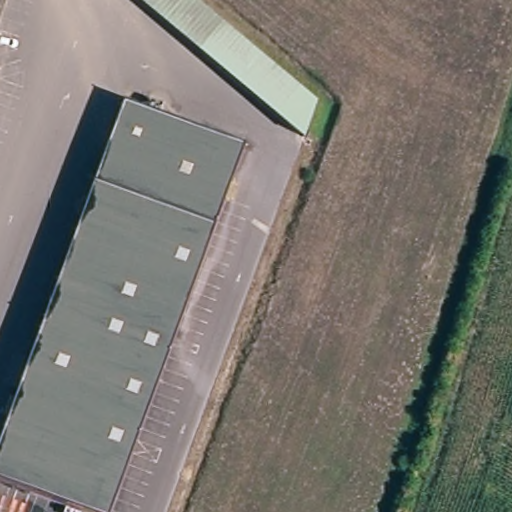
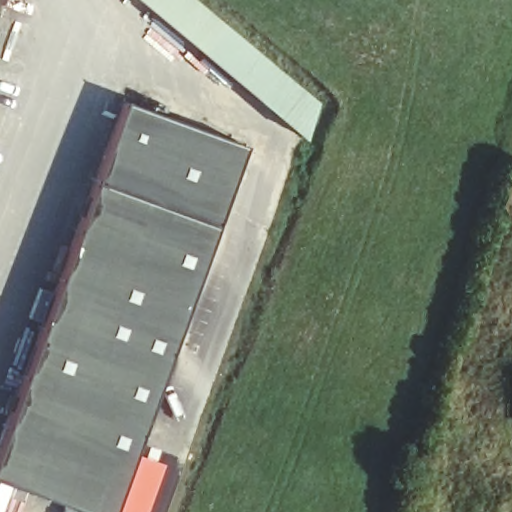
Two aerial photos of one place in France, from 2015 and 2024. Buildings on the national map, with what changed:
unchanged [(276,119),(137,0),(197,0),(302,87),(276,119)]
unchanged [(116,100),(241,136),(132,512),(102,512),(6,484),(116,100)]

